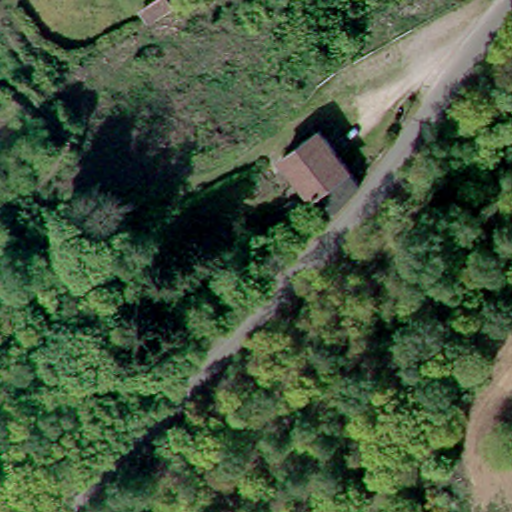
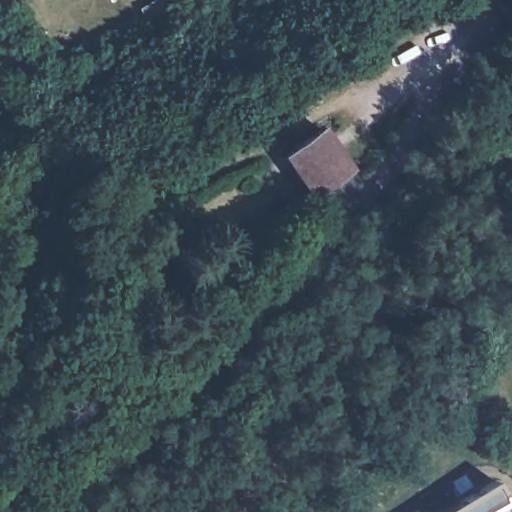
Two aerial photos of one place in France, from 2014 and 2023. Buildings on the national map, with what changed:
unchanged [(355,178),(357,180),(325,214),(278,151),(312,126),(315,125),(355,178)]
new [(504,502),(509,512),(442,512),(492,483),(504,502)]

